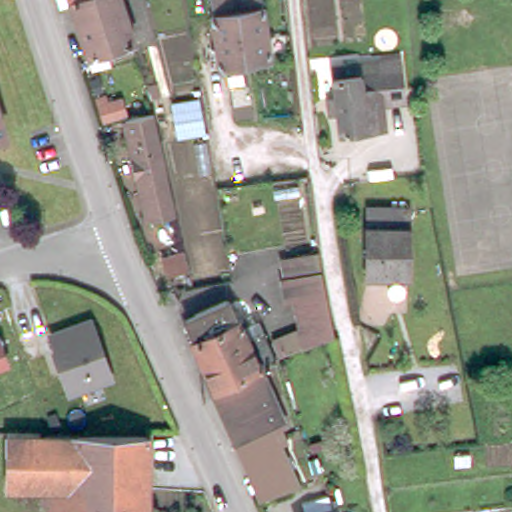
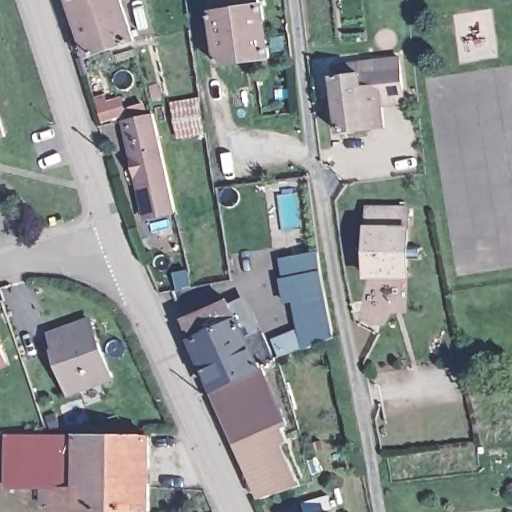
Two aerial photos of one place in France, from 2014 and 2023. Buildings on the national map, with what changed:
unchanged [(89,52),(72,0),(122,0),(134,36),(89,52)]
unchanged [(219,58),(211,4),(215,2),(215,0),(264,0),(271,50),(219,58)]
unchanged [(328,91),(335,90),(332,61),(361,57),(381,55),(399,54),(404,97),(382,99),(385,123),(339,127),(336,108),(329,109),(328,91)]
unchanged [(178,140),(173,110),(171,105),(198,100),(198,104),(205,134),(178,140)]
unchanged [(123,116),(152,110),(176,207),(146,214),(123,116)]
unchanged [(0,135),(0,114),(6,134),(0,135)]
unchanged [(404,204),(403,273),(361,273),(363,202),(404,204)]
unchanged [(188,270),(169,275),(164,255),(183,250),(188,270)]
unchanged [(305,347),(295,300),(287,301),(282,278),(289,277),(284,258),(319,252),(321,270),(326,294),(335,335),(305,347)]
unchanged [(188,338),(186,332),(188,331),(183,318),(224,298),(223,295),(230,292),(231,295),(238,308),(231,311),(234,316),(241,328),(253,322),(258,331),(268,354),(256,360),(208,381),(188,338)]
unchanged [(58,348),(52,333),(91,318),(113,375),(71,391),(55,349),(58,348)]
unchanged [(0,374),(0,338),(13,370),(0,374)]
unchanged [(256,360),(282,419),(278,421),(284,435),(278,437),(296,479),(257,491),(208,381),(256,360)]
unchanged [(149,505),(51,505),(51,499),(43,499),(43,485),(8,485),(8,428),(151,431),(149,505)]
unchanged [(334,502),(338,512),(310,512),(309,511),(334,502)]

